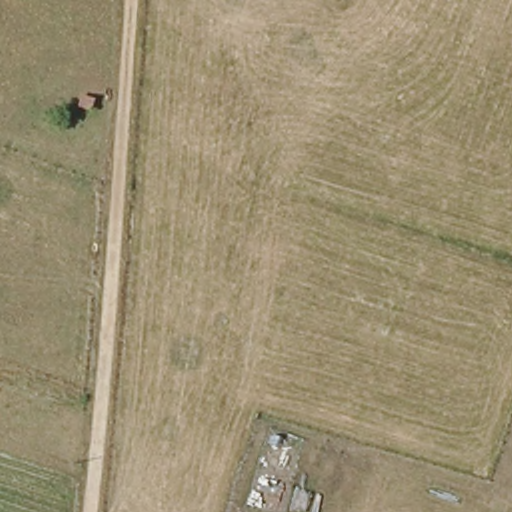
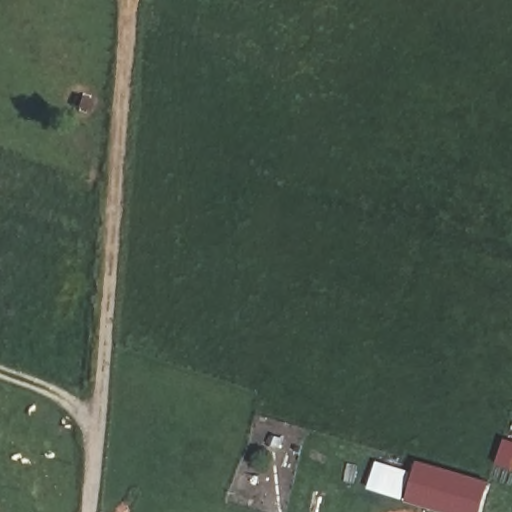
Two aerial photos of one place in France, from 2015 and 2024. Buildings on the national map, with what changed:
new [(497,465),(506,440),(512,442),(512,469),(497,465)]
new [(377,462),(413,472),(417,460),(491,481),(482,512),(440,512),(406,502),(401,496),(370,489),(377,462)]

